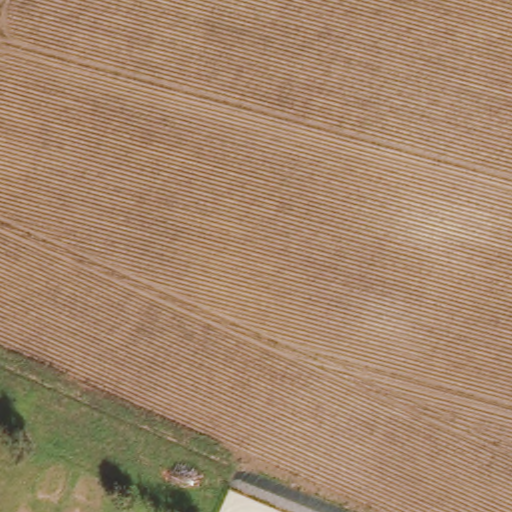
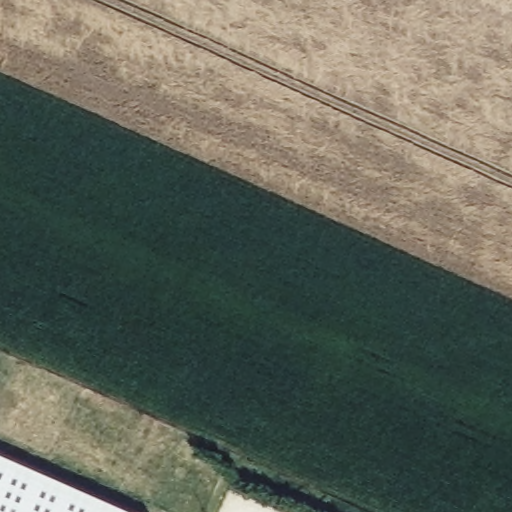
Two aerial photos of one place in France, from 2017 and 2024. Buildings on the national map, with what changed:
new [(0,449),(141,512),(0,512),(0,449)]

